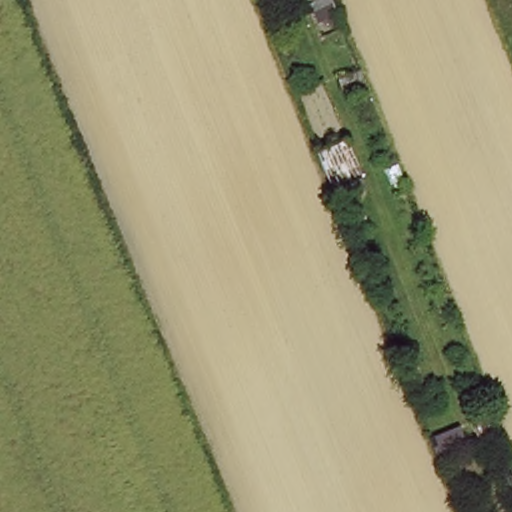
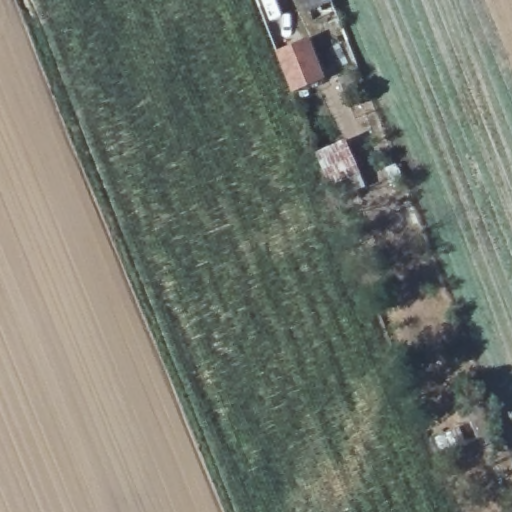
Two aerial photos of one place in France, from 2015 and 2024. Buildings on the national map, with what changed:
unchanged [(300,0),(330,0),(306,13),(300,0)]
new [(325,80),(293,93),(277,51),(309,39),(325,80)]
unchanged [(344,141),(359,177),(329,189),(313,155),(344,141)]
unchanged [(492,413),(503,441),(480,451),(468,424),(492,413)]

